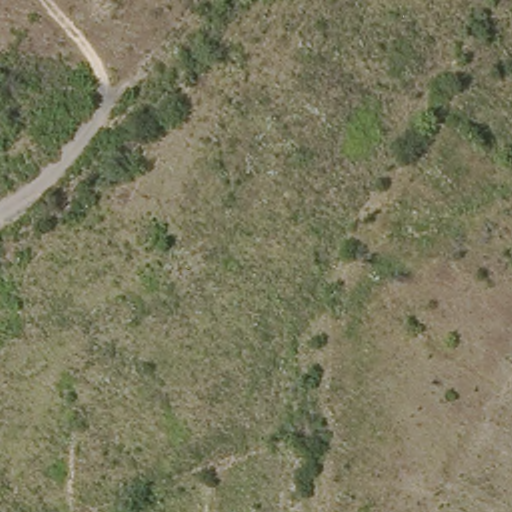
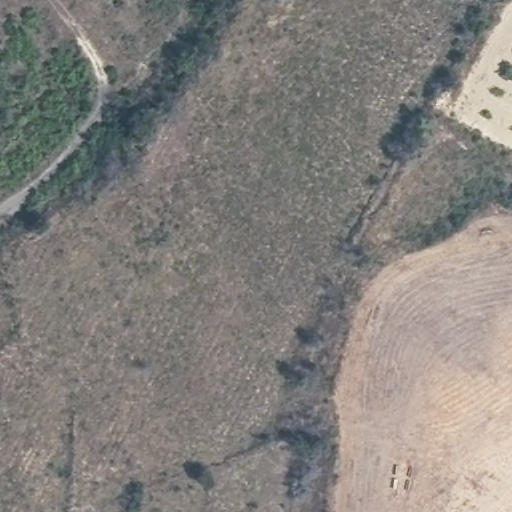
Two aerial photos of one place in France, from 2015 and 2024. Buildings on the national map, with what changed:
[]

